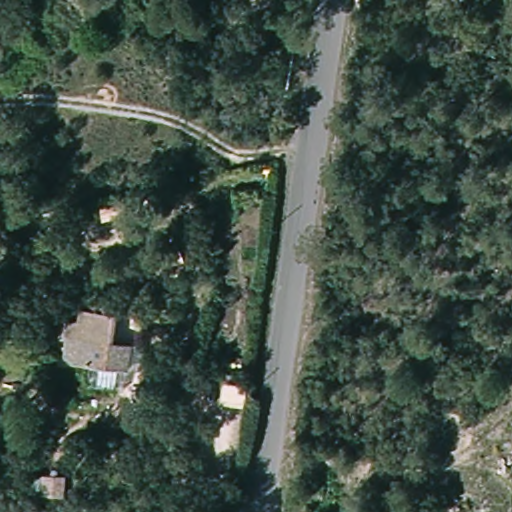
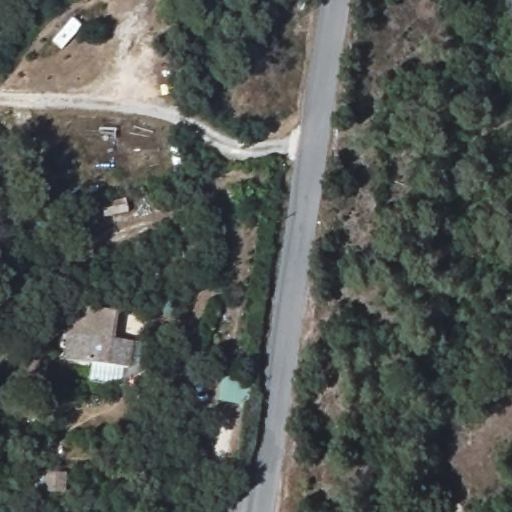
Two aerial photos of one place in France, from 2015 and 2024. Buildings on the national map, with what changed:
unchanged [(62,315),(135,325),(130,375),(55,362),(62,315)]

